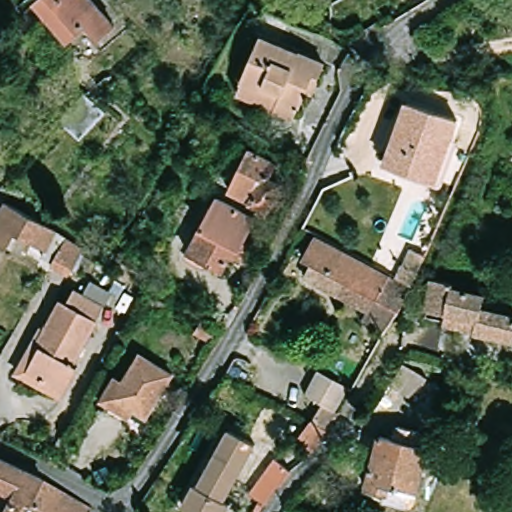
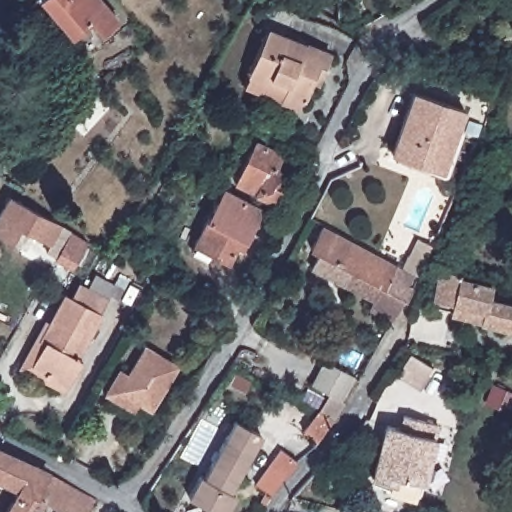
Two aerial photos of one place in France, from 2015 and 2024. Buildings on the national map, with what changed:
unchanged [(117,21),(99,34),(89,21),(72,33),(48,0),(102,0),(117,21)]
unchanged [(246,84),(271,25),(311,42),(333,51),(331,56),(324,72),(320,82),(314,80),(308,95),(303,108),(284,100),(246,84)]
unchanged [(83,88),(86,84),(90,89),(107,105),(81,133),(60,113),(83,88)]
unchanged [(464,107),(453,166),(395,155),(407,96),(464,107)]
unchanged [(294,152),(286,167),(296,172),(284,200),(242,181),(262,138),(294,152)]
unchanged [(266,210),(246,250),(239,247),(230,264),(196,247),(226,189),(266,210)]
unchanged [(36,232),(28,246),(0,231),(0,220),(8,205),(0,200),(0,199),(4,191),(13,196),(17,190),(23,193),(19,200),(88,239),(72,267),(53,257),(60,246),(53,242),(36,232)]
unchanged [(311,265),(312,263),(319,251),(311,247),(323,225),(414,273),(408,283),(413,285),(393,320),(371,307),(375,300),(346,284),(311,265)]
unchanged [(406,253),(414,235),(429,243),(421,261),(406,253)]
unchanged [(454,312),(454,307),(432,304),(438,268),(457,271),(457,273),(490,279),(488,293),(512,298),(512,322),(454,312)]
unchanged [(102,272),(103,273),(124,284),(118,297),(95,286),(102,272)]
unchanged [(48,336),(70,291),(78,295),(80,290),(84,282),(95,288),(112,296),(105,310),(106,310),(83,354),(90,358),(75,385),(73,391),(24,366),(41,333),(48,336)]
unchanged [(156,405),(144,398),(139,407),(109,389),(124,364),(133,369),(149,342),(182,361),(156,405)]
unchanged [(417,387),(395,372),(409,352),(431,366),(417,387)]
unchanged [(313,410),(315,408),(326,392),(322,390),(309,382),(321,357),(335,365),(353,375),(340,398),(344,400),(331,419),(316,440),(299,428),(312,411),(313,410)]
unchanged [(247,428),(214,486),(219,488),(208,509),(170,488),(181,468),(186,470),(218,412),(247,428)]
unchanged [(396,477),(394,484),(373,479),(387,425),(398,428),(401,417),(435,425),(432,437),(422,483),(396,477)]
unchanged [(283,449),(273,466),(269,465),(249,497),(241,492),(249,480),(241,475),(264,438),(283,449)]
unchanged [(64,512),(58,509),(43,500),(37,512),(9,512),(20,491),(0,481),(0,451),(48,473),(72,486),(94,500),(88,512),(64,512)]

